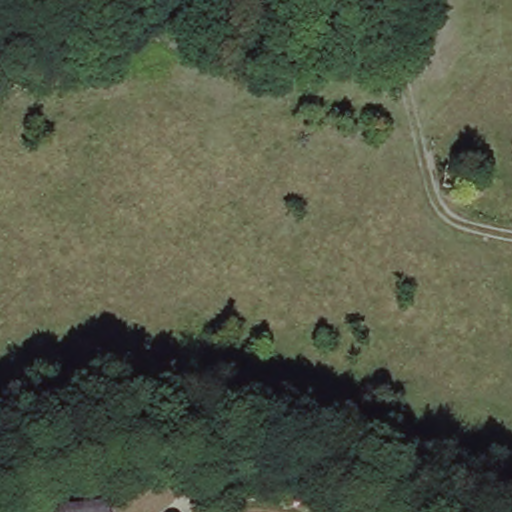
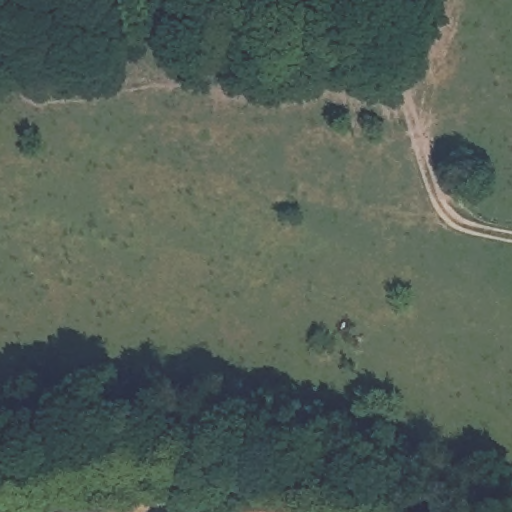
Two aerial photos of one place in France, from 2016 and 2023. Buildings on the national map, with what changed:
unchanged [(109,499),(110,512),(7,512),(6,510),(109,499)]

